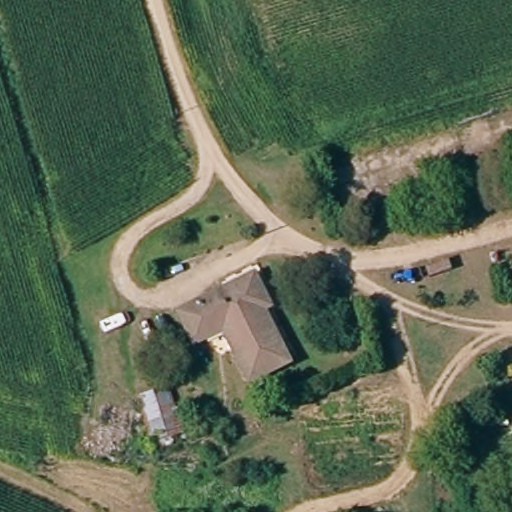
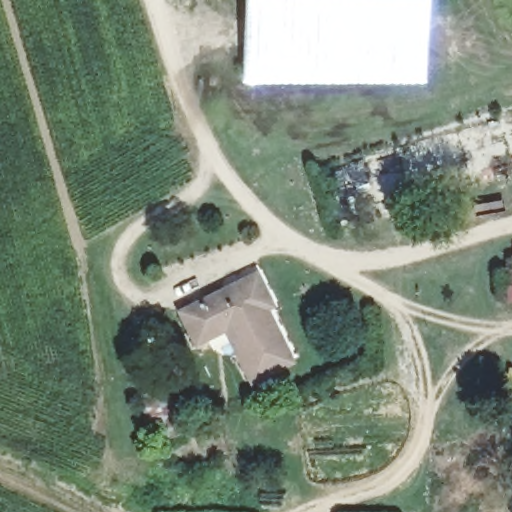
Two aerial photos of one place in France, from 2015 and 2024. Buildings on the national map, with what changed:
new [(423,84),(243,82),(242,0),(423,0),(423,84)]
unchanged [(182,311),(255,273),(273,307),(263,311),(290,362),(251,383),(225,332),(200,345),(182,311)]
unchanged [(140,400),(171,387),(183,431),(154,442),(140,400)]

